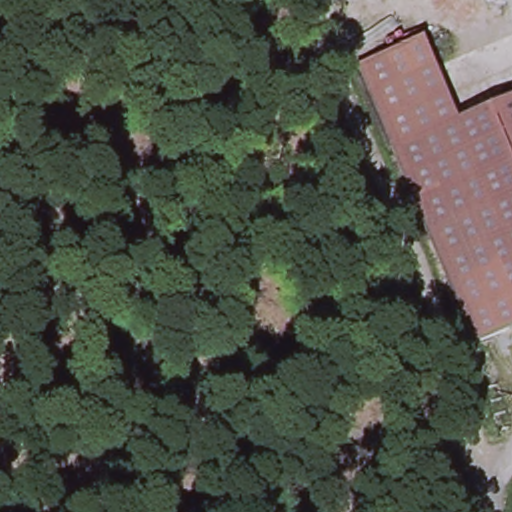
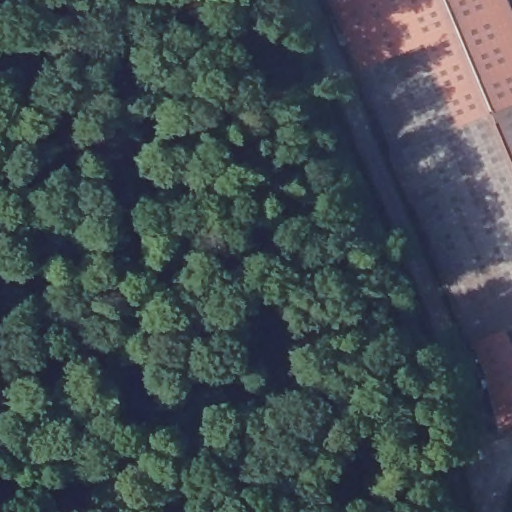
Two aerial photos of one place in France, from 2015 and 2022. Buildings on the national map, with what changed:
new [(422,38),(355,66),(328,0),(507,0),(512,13),(512,98),(457,121),(422,38)]
unchanged [(457,121),(512,98),(512,330),(474,347),(355,66),(422,38),(457,121)]
new [(512,426),(500,432),(485,370),(474,347),(509,331),(512,340),(512,426)]

